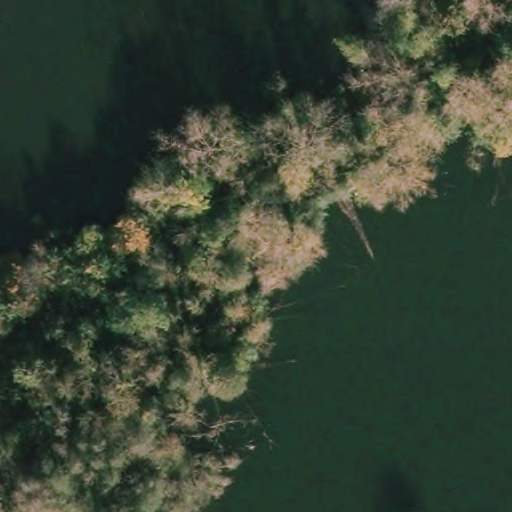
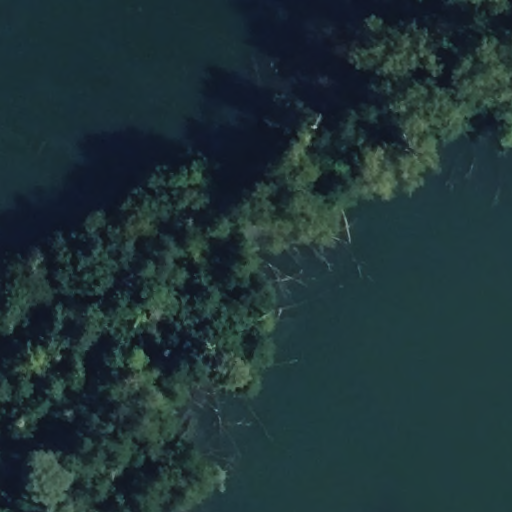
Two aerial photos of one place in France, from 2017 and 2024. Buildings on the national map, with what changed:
[]

